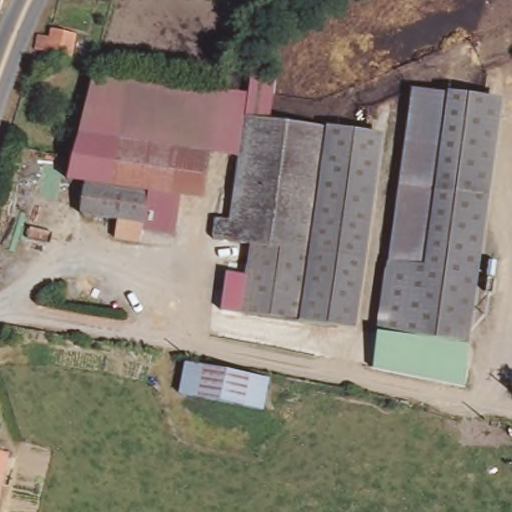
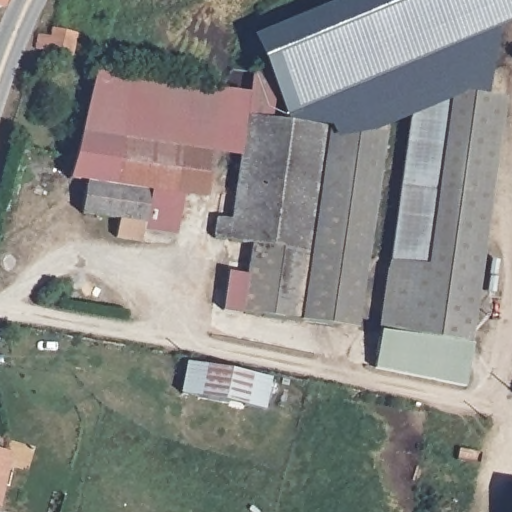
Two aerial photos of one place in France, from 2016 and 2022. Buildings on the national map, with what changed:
new [(269,120),(257,118),(260,100),(249,99),(252,71),(265,73),(251,36),(339,0),(512,0),(512,24),(285,119),(274,92),(269,120)]
unchanged [(38,38),(40,34),(70,40),(66,57),(27,50),(30,36),(38,38)]
unchanged [(202,197),(154,191),(92,183),(81,181),(84,154),(85,140),(88,119),(90,98),(92,80),(96,80),(144,86),(260,100),(257,118),(251,160),(220,157),(214,199),(202,197)]
unchanged [(424,85),(501,96),(460,344),(384,330),(422,97),(424,85)]
unchanged [(257,118),(381,139),(349,329),(252,312),(264,243),(222,236),(225,217),(242,220),(251,160),(257,118)]
unchanged [(149,240),(121,237),(122,219),(89,215),(92,183),(154,191),(151,221),(149,240)]
unchanged [(202,197),(199,227),(151,221),(154,191),(202,197)]
unchanged [(271,380),(265,410),(179,393),(185,362),(271,380)]
unchanged [(3,458),(0,474),(0,457),(3,458)]

